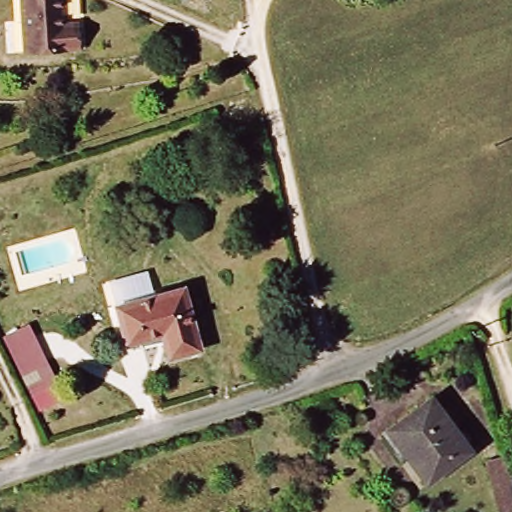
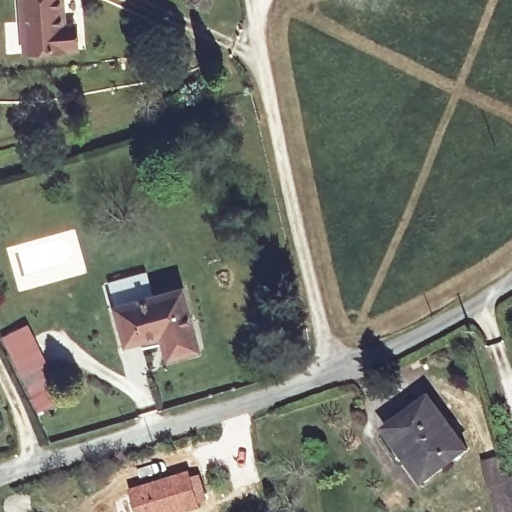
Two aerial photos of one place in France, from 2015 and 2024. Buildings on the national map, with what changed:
unchanged [(75,53),(29,47),(35,0),(76,0),(72,29),(78,29),(75,53)]
unchanged [(132,341),(122,305),(190,287),(206,347),(175,355),(170,331),(132,341)]
unchanged [(32,386),(9,340),(27,331),(49,376),(32,386)]
unchanged [(430,482),(392,429),(436,396),(475,449),(430,482)]
unchanged [(512,457),(512,459),(512,512),(507,512),(492,463),(512,457)]
new [(190,470),(192,477),(200,474),(209,506),(189,512),(136,512),(129,488),(190,470)]

